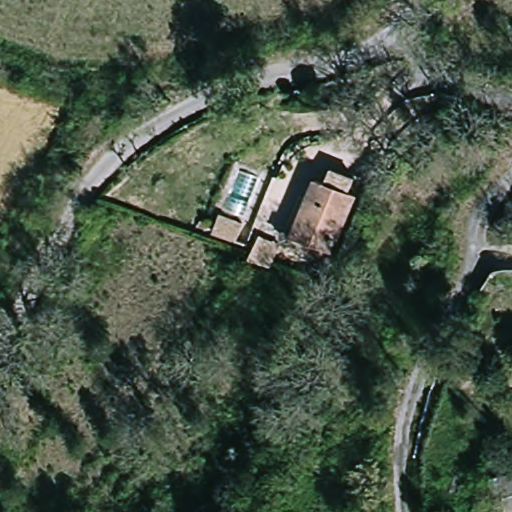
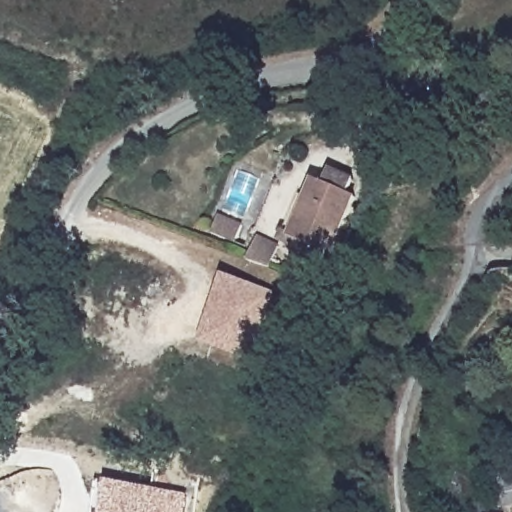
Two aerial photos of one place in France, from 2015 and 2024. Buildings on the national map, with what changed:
unchanged [(318,181),(358,197),(337,249),(298,233),(318,181)]
new [(276,292),(251,360),(197,341),(222,274),(276,292)]
unchanged [(506,474),(512,473),(512,504),(506,474)]
new [(182,512),(100,512),(105,481),(185,494),(182,512)]

